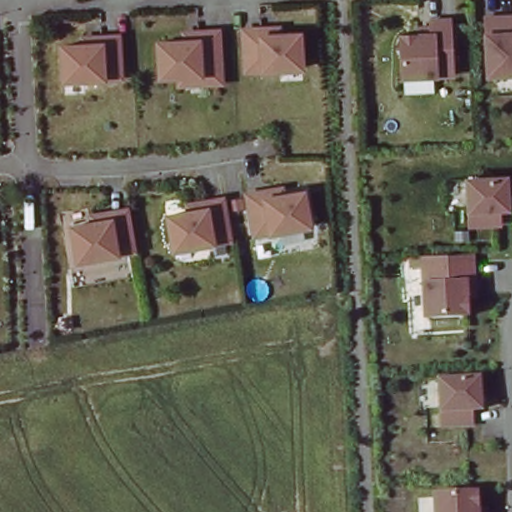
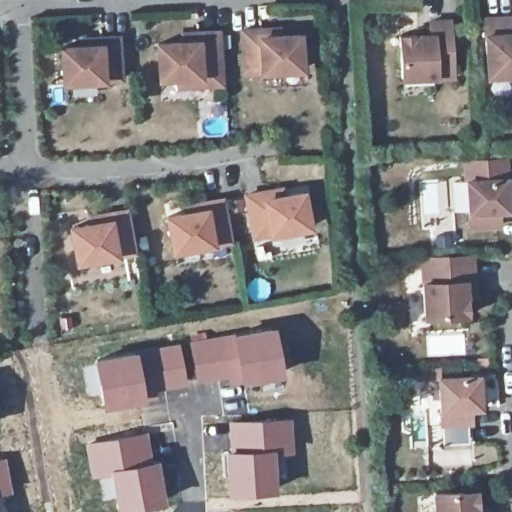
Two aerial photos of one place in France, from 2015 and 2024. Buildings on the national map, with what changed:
unchanged [(484,18),(512,17),(512,74),(487,75),(484,18)]
unchanged [(449,20),(452,75),(402,78),(399,36),(417,35),(417,28),(430,27),(429,21),(449,20)]
unchanged [(277,25),(277,32),(298,31),(300,65),(244,68),(242,27),(260,26),(277,25)]
unchanged [(178,77),(160,78),(158,44),(184,42),(183,34),(197,33),(218,32),(220,83),(199,84),(178,85),(178,77)]
unchanged [(82,39),(99,39),(117,38),(120,78),(63,82),(62,48),(82,46),(82,39)]
unchanged [(508,209),(499,210),(500,225),(469,227),(467,180),(506,178),(508,209)]
unchanged [(281,189),(282,196),(303,193),(309,226),(253,236),(246,196),(264,192),(281,189)]
unchanged [(229,240),(173,250),(167,217),(188,213),(187,206),(204,203),(222,200),(229,240)]
unchanged [(133,251),(77,261),(72,228),(92,224),(90,217),(108,214),(125,211),(133,251)]
unchanged [(466,297),(467,315),(425,317),(422,266),(472,263),(473,285),(474,296),(466,297)]
new [(275,325),(282,374),(240,382),(231,333),(275,325)]
new [(205,333),(206,336),(231,333),(240,382),(229,383),(228,379),(196,382),(189,336),(205,333)]
new [(179,342),(186,384),(153,386),(152,380),(143,381),(138,350),(179,342)]
new [(138,350),(143,381),(146,396),(99,405),(91,359),(138,350)]
unchanged [(478,376),(480,407),(471,408),(472,423),(441,425),(439,378),(478,376)]
new [(292,417),(293,452),(275,454),(274,447),(229,450),(228,420),(292,417)]
new [(147,431),(153,459),(105,469),(107,478),(96,480),(91,480),(84,442),(147,431)]
new [(229,450),(274,447),(275,454),(275,491),(227,495),(223,450),(229,450)]
new [(6,456),(12,492),(0,494),(0,457),(6,456)]
new [(107,478),(105,469),(153,459),(158,459),(164,502),(116,511),(113,500),(100,501),(96,480),(107,478)]
unchanged [(477,508),(477,512),(435,512),(434,492),(476,490),(477,508)]

